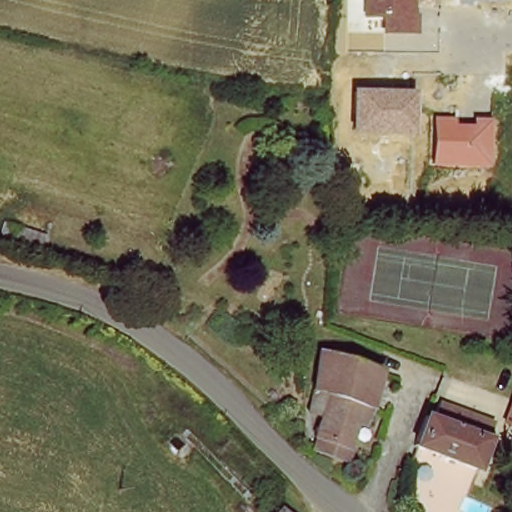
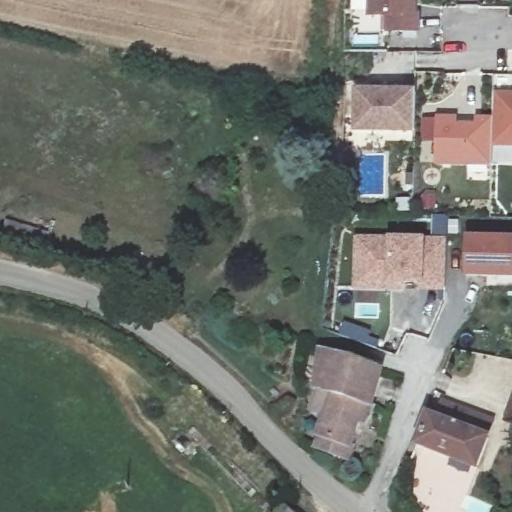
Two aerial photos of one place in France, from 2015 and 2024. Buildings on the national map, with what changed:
unchanged [(422,14),(422,34),(387,33),(387,15),(366,15),(366,0),(417,0),(418,14),(422,14)]
unchanged [(418,89),(418,134),(354,135),(354,90),(418,89)]
new [(493,116),(494,91),(512,92),(512,165),(493,164),(493,116)]
unchanged [(438,115),(457,115),(457,123),(474,122),(474,116),(493,116),(493,166),(435,165),(438,115)]
unchanged [(46,227),(40,248),(1,238),(0,219),(46,227)]
new [(389,237),(424,239),(424,238),(447,238),(447,293),(419,293),(418,285),(403,285),(404,290),(353,289),(354,236),(389,237)]
new [(512,237),(512,280),(465,279),(465,236),(512,237)]
unchanged [(316,393),(313,392),(318,355),(376,374),(368,408),(316,393)]
unchanged [(368,408),(360,427),(353,425),(344,449),(330,445),(326,455),(311,451),(315,439),(313,437),(322,408),(313,404),(316,393),(368,408)]
unchanged [(415,453),(427,422),(488,446),(484,456),(476,475),(415,453)]
unchanged [(284,505),(293,512),(278,512),(284,505)]

